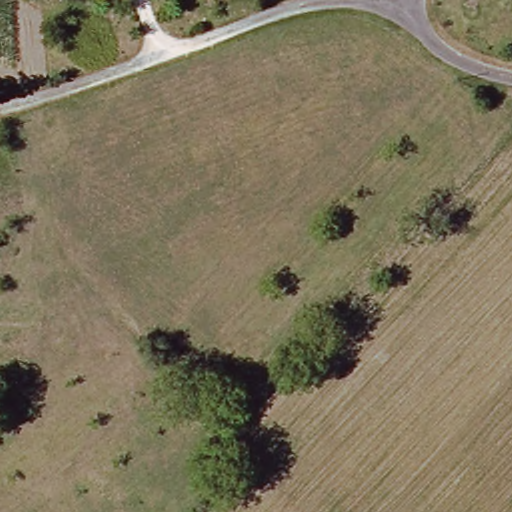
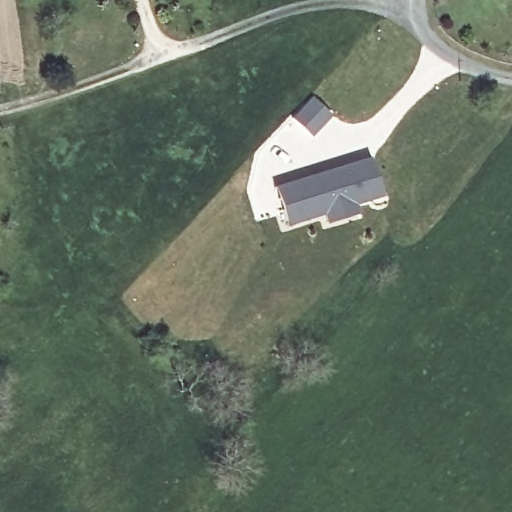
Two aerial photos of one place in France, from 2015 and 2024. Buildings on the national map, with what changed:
new [(289,225),(276,187),(370,157),(382,197),(356,204),(358,213),(328,223),(324,214),(289,225)]

